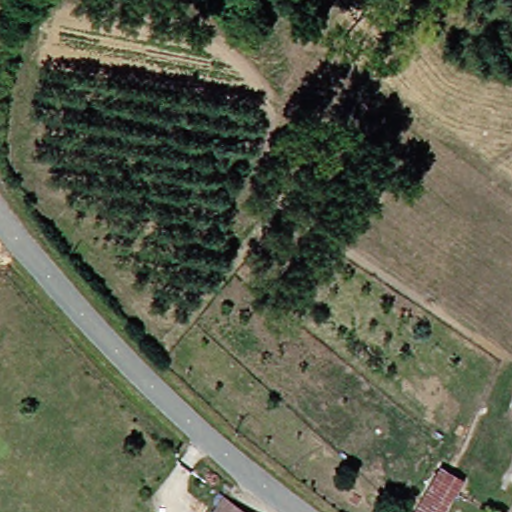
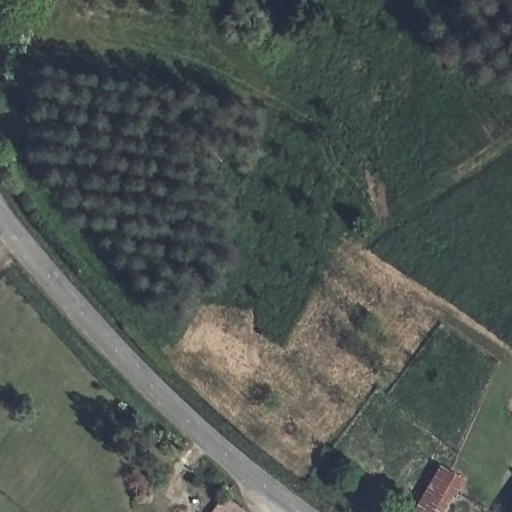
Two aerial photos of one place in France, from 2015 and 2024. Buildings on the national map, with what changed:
unchanged [(450,489),(445,486),(431,512),(408,512),(432,463),(457,476),(450,489)]
unchanged [(242,512),(204,512),(217,494),(242,512)]
unchanged [(512,512),(504,512),(512,494),(512,512)]

